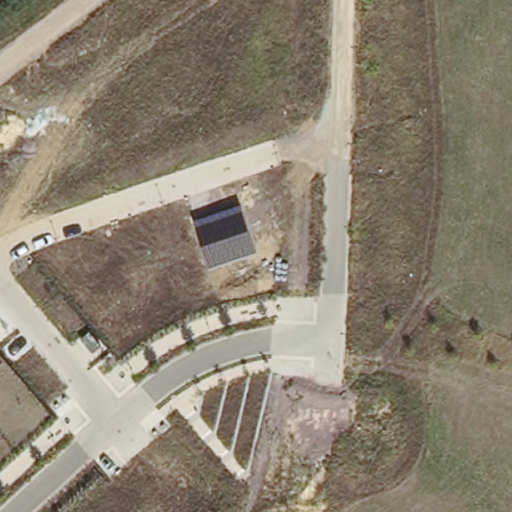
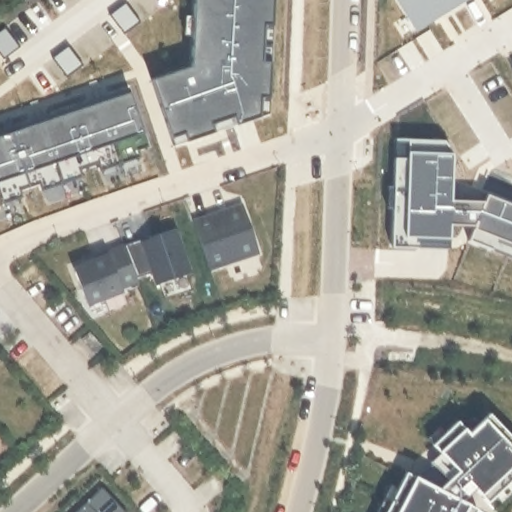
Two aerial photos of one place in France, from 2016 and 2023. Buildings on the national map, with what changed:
new [(181,58),(185,0),(269,0),(262,114),(168,142),(147,70),(181,58)]
new [(456,7),(414,32),(395,0),(452,0),(456,7)]
new [(456,7),(452,0),(469,0),(456,7)]
new [(137,142),(123,147),(127,160),(95,172),(91,161),(68,170),(72,181),(36,196),(30,183),(10,191),(15,204),(0,210),(0,120),(118,79),(137,142)]
new [(450,153),(449,198),(483,199),(474,225),(447,224),(447,247),(415,247),(415,238),(403,236),(406,151),(450,153)]
new [(483,199),(484,192),(512,202),(512,250),(505,247),(508,242),(473,230),(474,225),(483,199)]
unchanged [(207,267),(194,223),(244,207),(257,251),(207,267)]
new [(106,258),(104,255),(143,240),(143,243),(173,232),(189,277),(157,284),(153,274),(136,281),(136,284),(120,292),(120,294),(90,308),(72,270),(106,258)]
new [(414,481),(431,468),(428,466),(440,455),(433,448),(456,423),(467,435),(487,414),(512,441),(512,495),(507,499),(500,491),(486,504),(474,491),(461,504),(475,511),(475,512),(388,512),(407,476),(414,481)]
new [(122,512),(80,512),(102,491),(122,512)]

